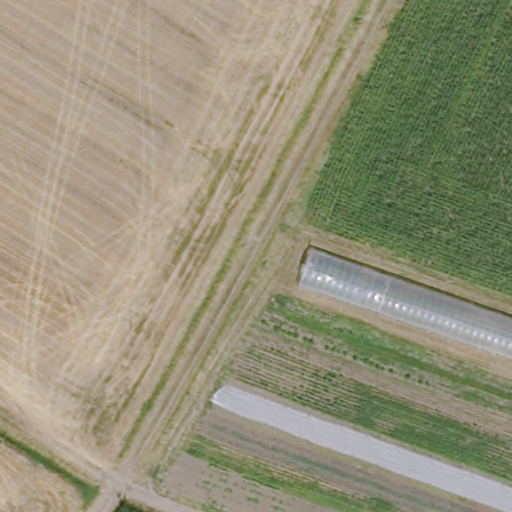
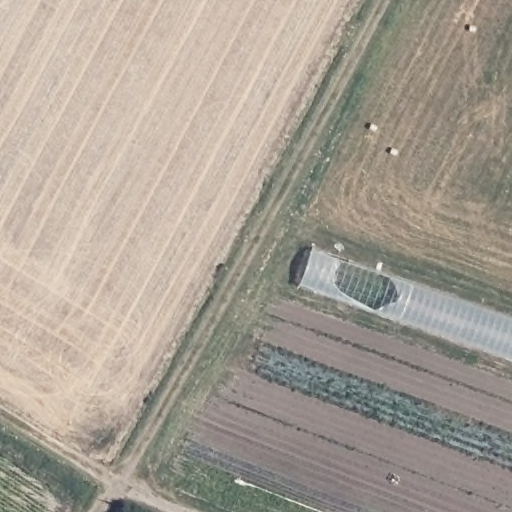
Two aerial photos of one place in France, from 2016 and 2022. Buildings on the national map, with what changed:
unchanged [(314,249),(512,318),(512,358),(300,285),(314,249)]

